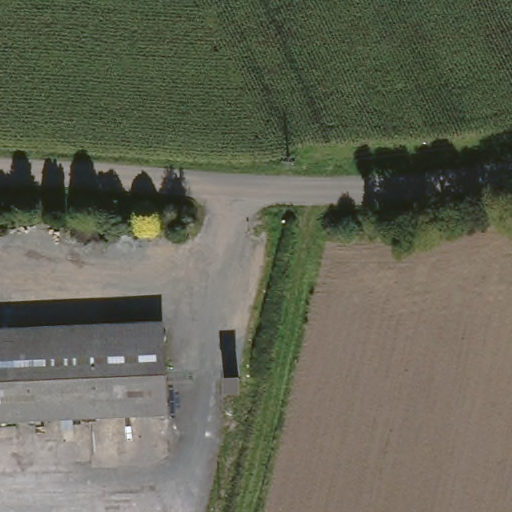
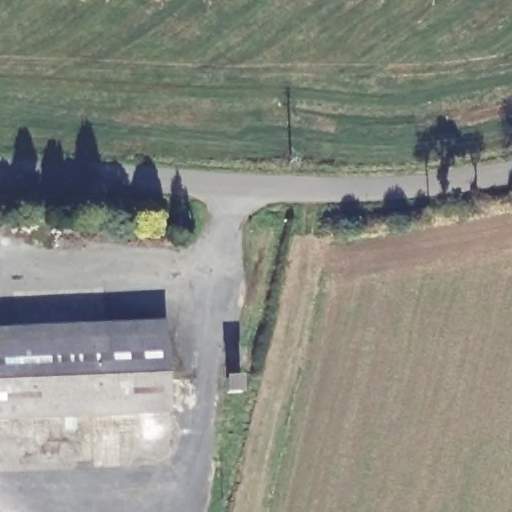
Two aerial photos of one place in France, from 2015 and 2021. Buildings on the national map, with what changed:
unchanged [(169,346),(0,337),(0,318),(170,327),(169,346)]
unchanged [(0,337),(169,346),(164,424),(0,415),(0,337)]

